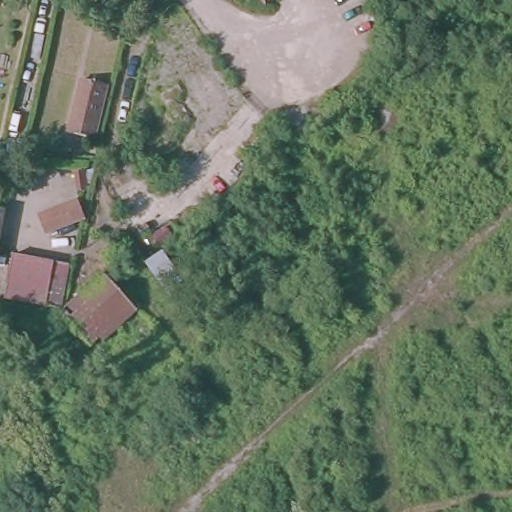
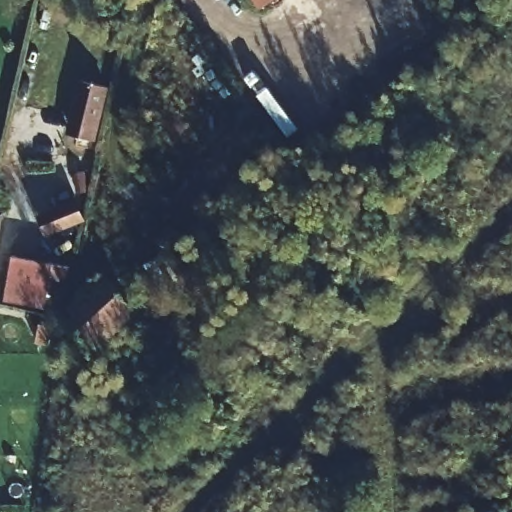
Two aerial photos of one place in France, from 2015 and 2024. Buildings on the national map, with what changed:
unchanged [(262,0),(269,0),(264,4),(262,0)]
unchanged [(80,81),(105,87),(92,140),(67,134),(80,81)]
unchanged [(73,193),(84,219),(45,235),(36,210),(73,193)]
unchanged [(0,217),(0,212),(1,212),(0,217)]
unchanged [(141,264),(160,249),(182,285),(164,297),(141,264)]
unchanged [(12,257),(66,270),(58,313),(3,300),(12,257)]
unchanged [(101,274),(135,309),(92,348),(62,315),(59,312),(63,308),(101,274)]

